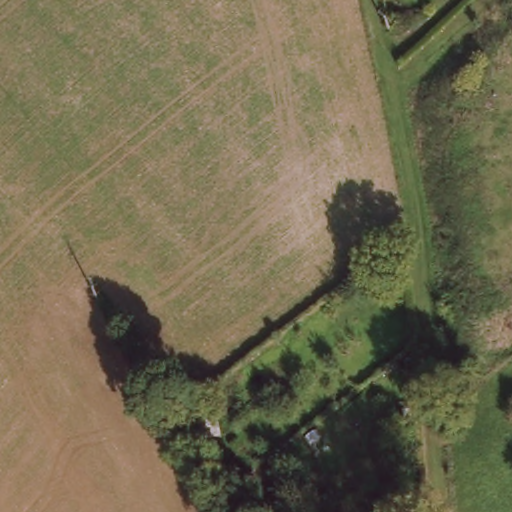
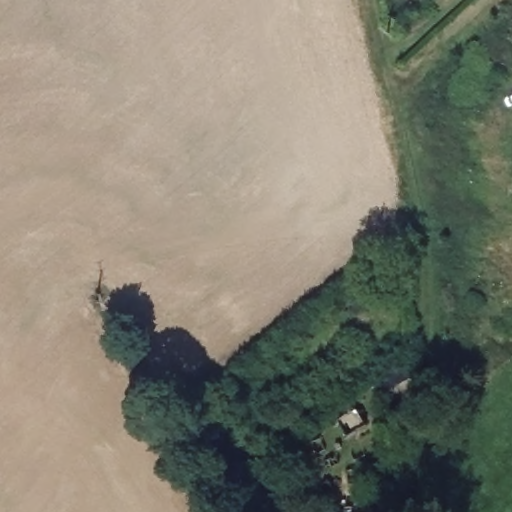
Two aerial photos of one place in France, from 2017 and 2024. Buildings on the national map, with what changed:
unchanged [(349,194),(362,210),(346,223),(333,207),(349,194)]

